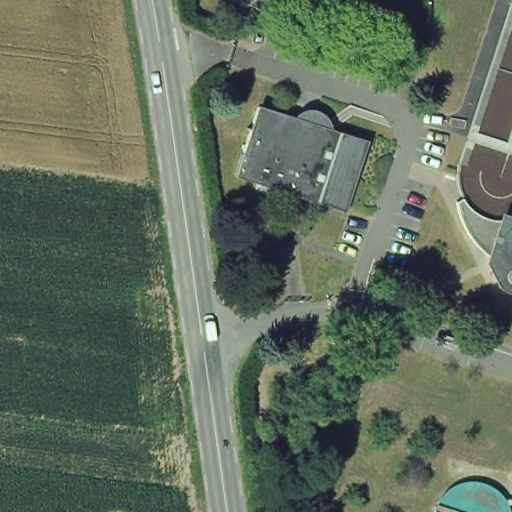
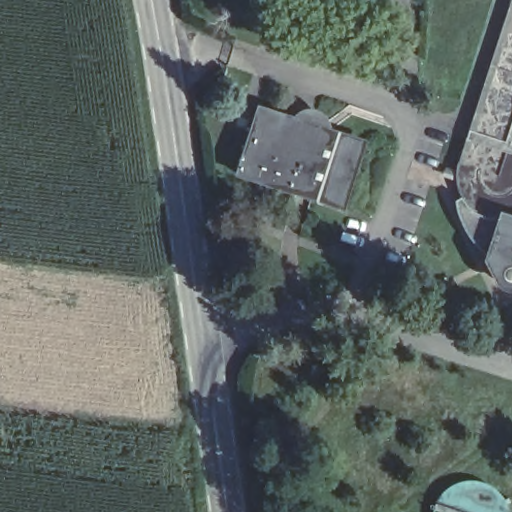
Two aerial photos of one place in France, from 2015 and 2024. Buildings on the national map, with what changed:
unchanged [(493,277),(498,261),(469,240),(450,201),(458,197),(454,185),(452,170),(509,0),(512,0),(512,284),(500,286),(493,277)]
unchanged [(246,168),(252,146),(254,147),(262,122),(265,123),(270,108),(312,120),(310,125),(311,133),(321,129),(323,121),(351,130),(350,133),(356,135),(358,149),(359,163),(352,178),(328,193),(246,168)]
unchanged [(428,507),(430,505),(430,502),(431,500),(433,497),(435,495),(436,493),(438,491),(440,489),(442,487),(445,485),(447,484),(450,483),(452,482),(455,481),(457,480),(460,479),(463,479),(465,479),(468,479),(471,479),(474,480),(476,480),(479,481),(482,482),(485,483),(487,484),(489,486),(491,487),(493,489),(495,491),(497,493),(499,496),(500,498),(502,500),(503,503),(504,505),(505,508),(505,511),(506,512),(427,512),(428,510),(428,507)]

